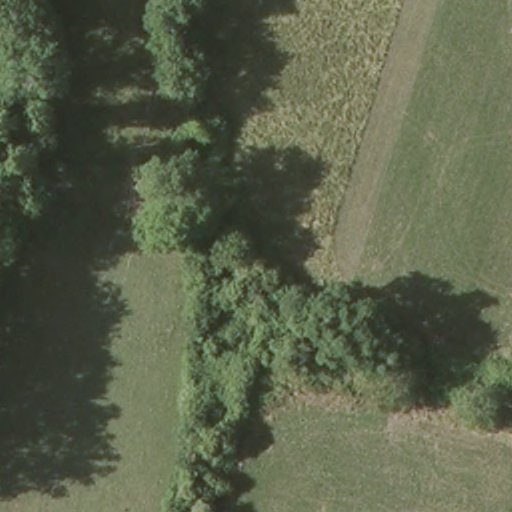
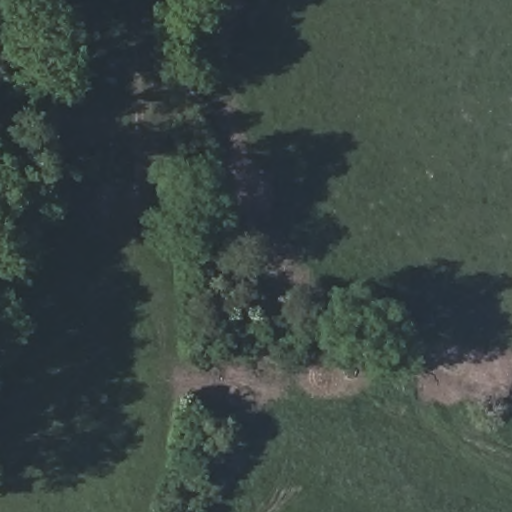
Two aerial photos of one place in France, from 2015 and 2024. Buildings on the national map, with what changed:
unchanged [(256,356),(243,354),(249,323),(262,325),(256,356)]

